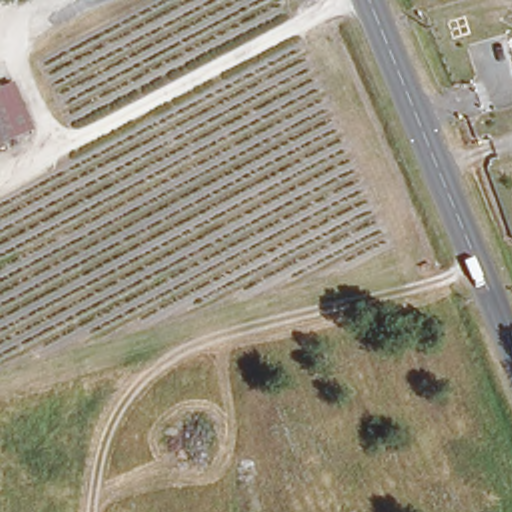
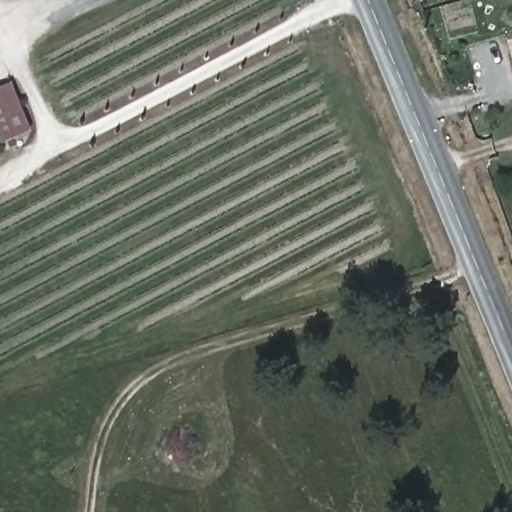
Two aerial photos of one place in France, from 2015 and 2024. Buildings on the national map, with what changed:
unchanged [(0,141),(0,118),(9,137),(0,141)]

